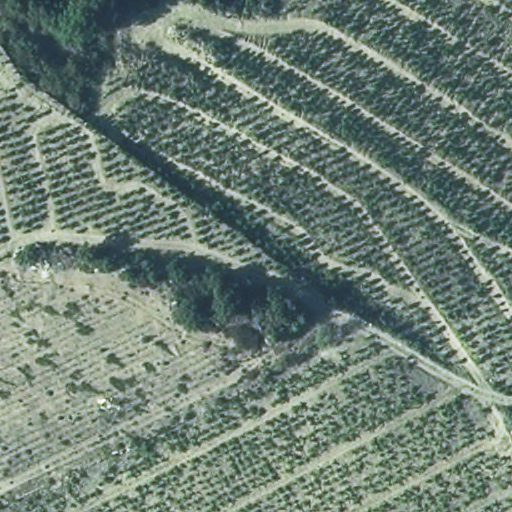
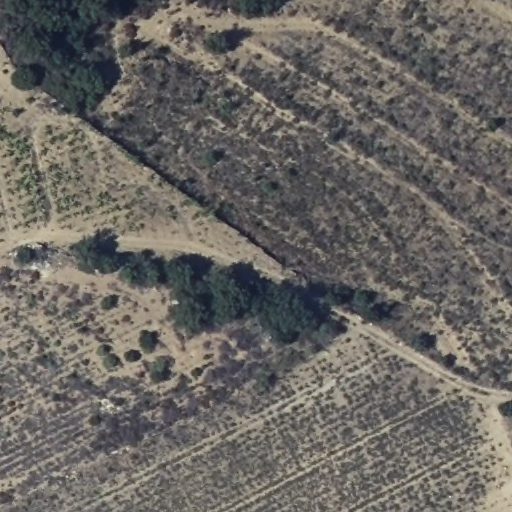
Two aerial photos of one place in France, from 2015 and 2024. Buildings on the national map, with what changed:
[]

